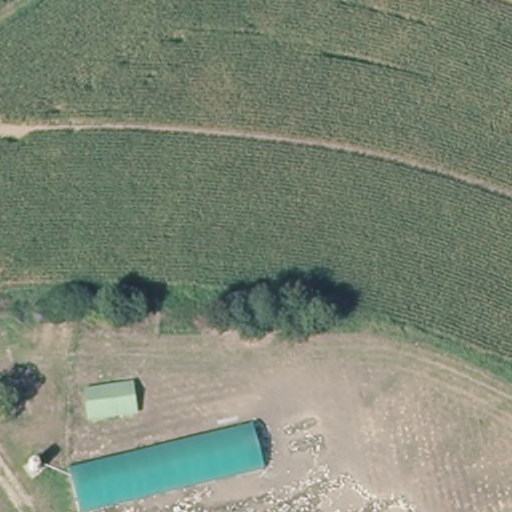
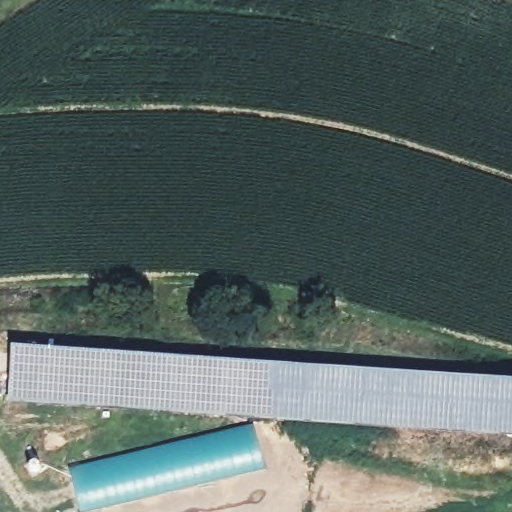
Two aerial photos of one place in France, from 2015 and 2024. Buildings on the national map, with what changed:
new [(16,345),(280,365),(275,420),(11,400),(16,345)]
new [(512,382),(512,439),(275,422),(275,420),(280,365),(512,382)]
demolished [(86,392),(136,385),(136,386),(140,417),(89,422),(86,392)]
unchanged [(69,471),(257,428),(266,466),(87,512),(81,512),(69,471)]

